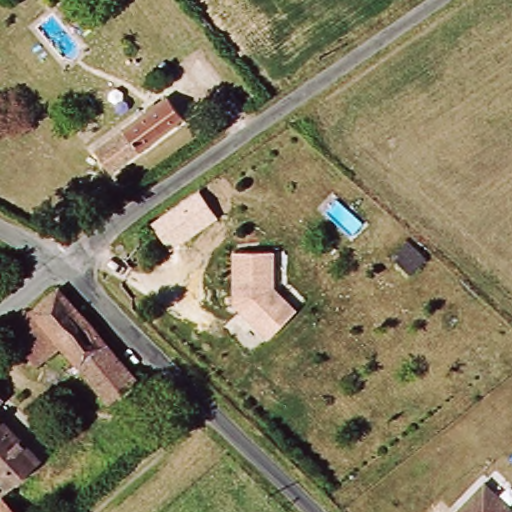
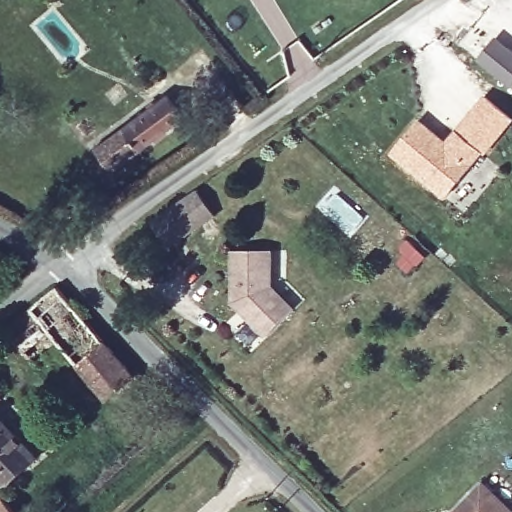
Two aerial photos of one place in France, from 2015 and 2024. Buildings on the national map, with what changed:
new [(512,55),(512,90),(511,91),(477,64),(495,42),(512,55)]
unchanged [(105,141),(118,132),(175,87),(192,111),(136,156),(123,165),(105,141)]
new [(422,120),(446,141),(457,128),(485,153),(446,199),(392,155),(422,120)]
unchanged [(199,188),(219,216),(170,249),(151,222),(199,188)]
unchanged [(410,239),(428,260),(411,276),(392,257),(410,239)]
unchanged [(275,287),(296,313),(267,337),(239,301),(240,251),(276,252),(275,287)]
unchanged [(36,367),(3,330),(57,288),(137,375),(110,398),(64,345),(36,367)]
unchanged [(0,489),(0,418),(25,450),(21,453),(28,463),(0,489)]
unchanged [(512,512),(454,512),(483,483),(512,512)]
unchanged [(18,512),(0,512),(0,503),(6,497),(18,512)]

